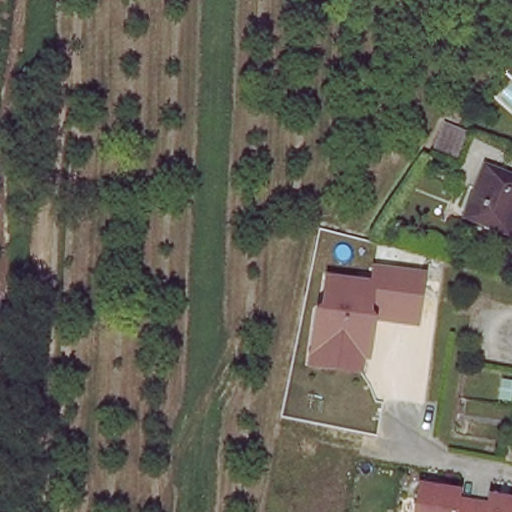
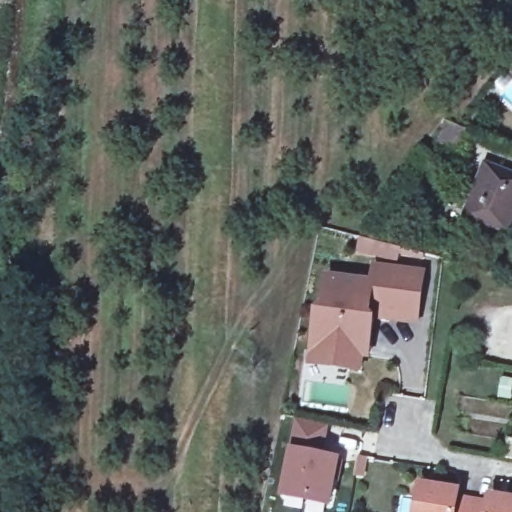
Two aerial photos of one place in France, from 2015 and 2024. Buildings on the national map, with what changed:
unchanged [(452,126),(464,131),(453,158),(433,151),(427,149),(426,148),(437,119),(452,126)]
unchanged [(479,167),(512,177),(512,231),(511,233),(462,218),(479,167)]
unchanged [(375,320),(371,363),(361,362),(359,373),(308,367),(324,275),(368,282),(373,263),(428,272),(418,326),(375,320)]
new [(323,424),(317,456),(335,459),(326,505),(282,497),(297,421),(323,424)]
unchanged [(457,488),(456,502),(470,502),(469,512),(414,512),(416,483),(457,488)]
unchanged [(486,502),(487,494),(512,498),(512,512),(469,512),(470,502),(486,502)]

